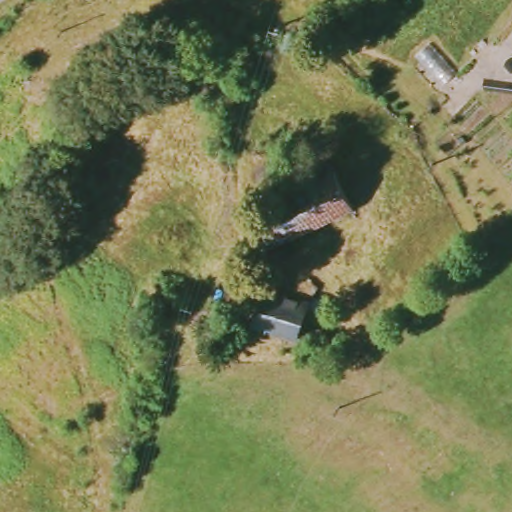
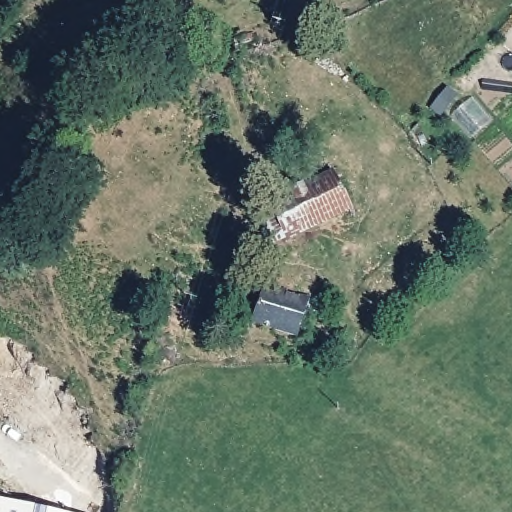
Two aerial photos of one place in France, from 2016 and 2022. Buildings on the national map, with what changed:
unchanged [(266,208),(332,173),(350,211),(284,243),(268,250),(252,216),(266,208)]
unchanged [(325,302),(319,318),(297,313),(291,335),(242,322),(257,284),(325,302)]
new [(70,512),(0,512),(0,498),(70,512)]

